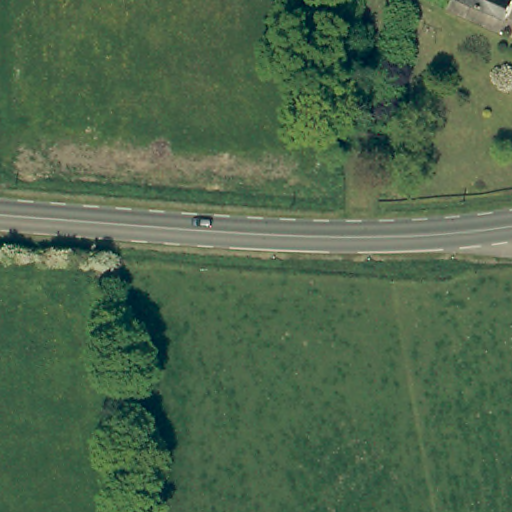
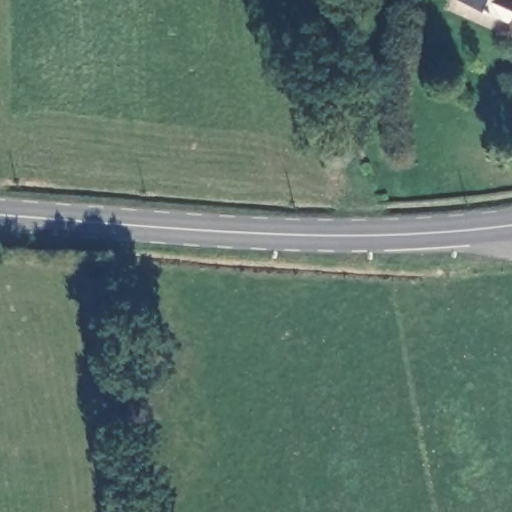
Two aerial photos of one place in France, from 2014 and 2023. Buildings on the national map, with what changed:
unchanged [(478,0),(512,0),(512,6),(508,14),(478,0)]

